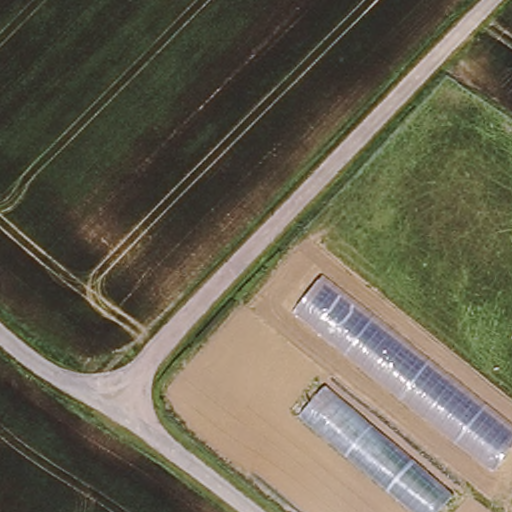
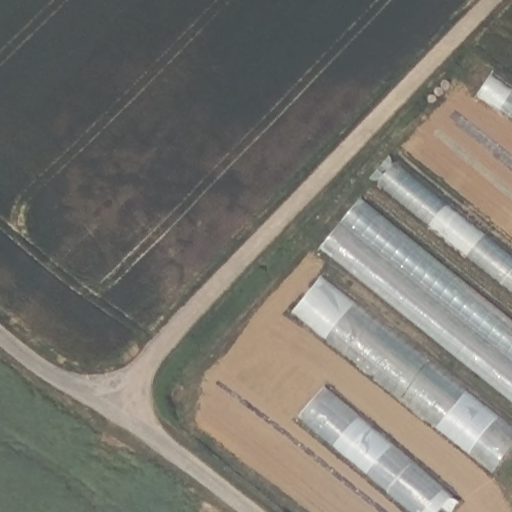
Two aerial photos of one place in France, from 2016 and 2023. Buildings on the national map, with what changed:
new [(397,160),(512,256),(512,292),(379,182),(397,160)]
new [(360,197),(512,317),(512,399),(323,247),(360,197)]
unchanged [(493,470),(292,315),(323,275),(512,426),(512,447),(493,470)]
unchanged [(412,512),(298,417),(325,386),(453,494),(437,512),(412,512)]

